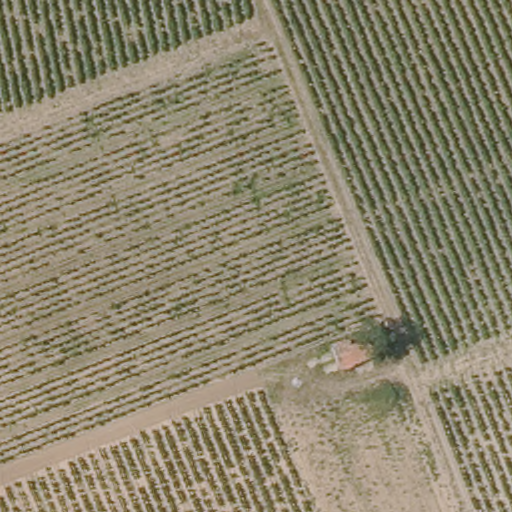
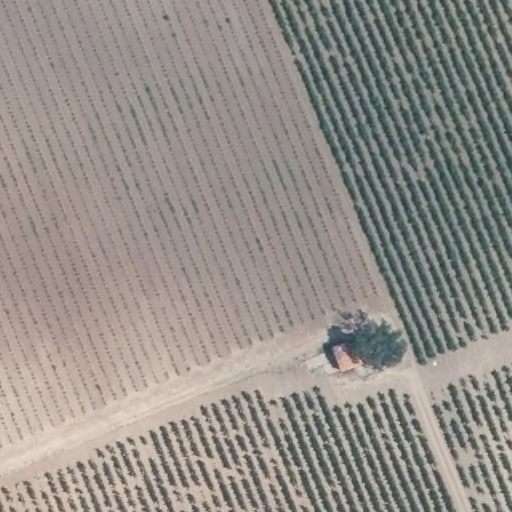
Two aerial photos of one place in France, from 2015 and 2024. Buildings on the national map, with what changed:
unchanged [(354,347),(378,336),(385,352),(361,363),(354,347)]

